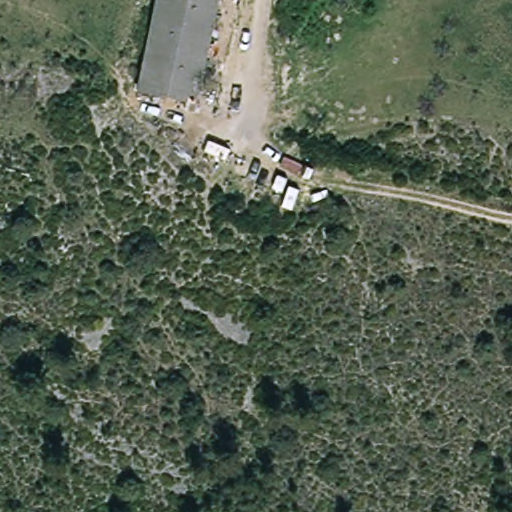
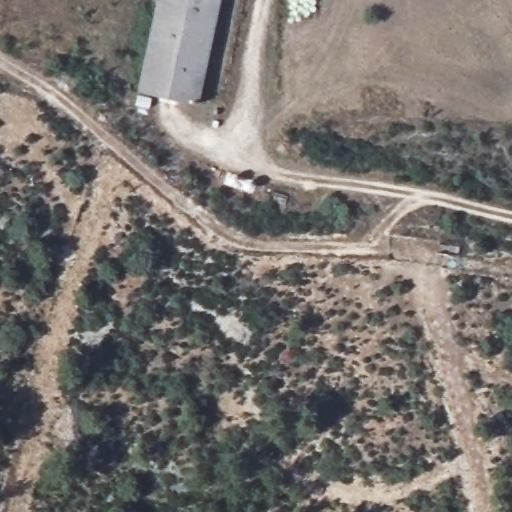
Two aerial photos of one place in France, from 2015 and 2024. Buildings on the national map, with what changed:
unchanged [(199,106),(142,91),(167,0),(228,0),(199,106)]

